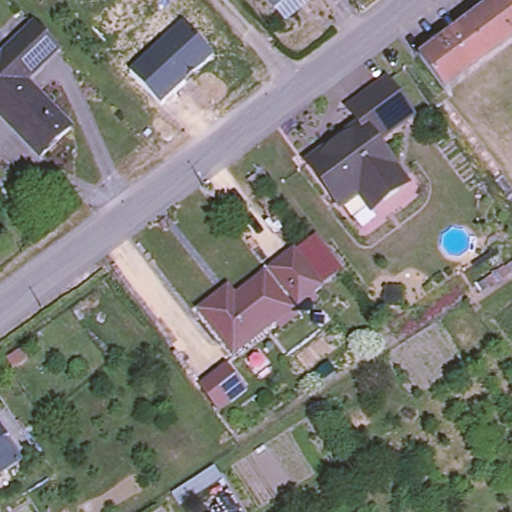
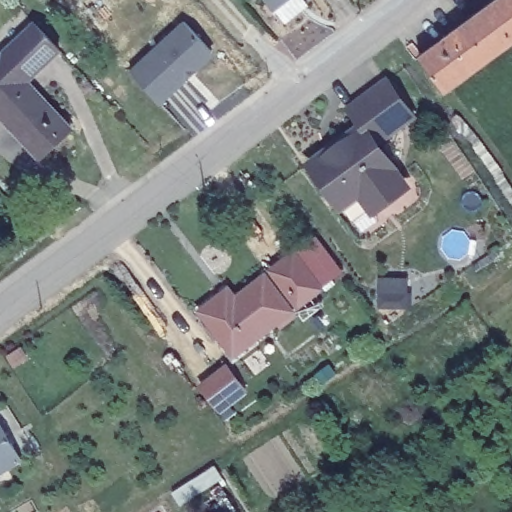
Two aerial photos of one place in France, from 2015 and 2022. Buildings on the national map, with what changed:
unchanged [(266,0),(285,0),(272,8),(266,0)]
unchanged [(460,85),(457,87),(450,93),(423,60),(434,52),(500,0),(512,0),(512,45),(460,85)]
unchanged [(216,54),(160,104),(130,68),(184,19),(216,54)]
unchanged [(60,50),(25,82),(71,132),(70,132),(40,159),(0,115),(0,58),(37,25),(60,50)]
unchanged [(388,165),(400,181),(385,194),(350,221),(307,166),(342,138),(357,126),(345,109),(382,81),(407,114),(370,143),(388,165)]
unchanged [(292,250),(318,284),(294,302),(268,266),(292,250)]
unchanged [(287,307),(240,342),(228,351),(195,308),(205,300),(215,293),(222,301),(260,273),(287,307)]
unchanged [(223,364),(241,386),(218,403),(212,395),(202,381),(223,364)]
unchanged [(0,470),(0,423),(21,456),(0,470)]

